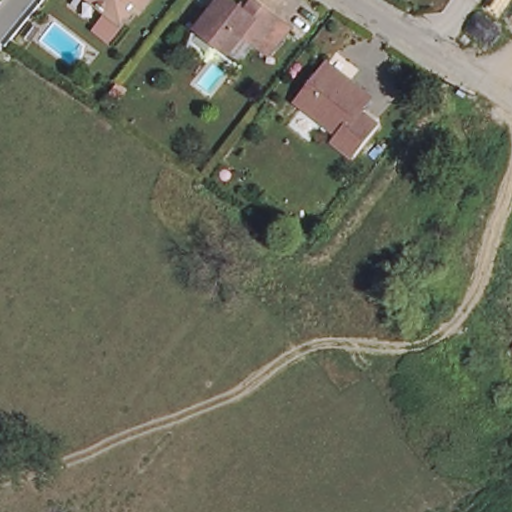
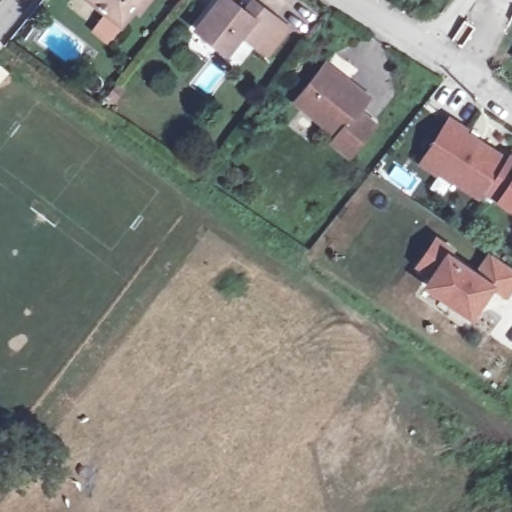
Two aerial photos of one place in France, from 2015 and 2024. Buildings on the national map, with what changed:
unchanged [(131,9),(117,25),(88,0),(144,0),(135,13),(131,9)]
unchanged [(256,51),(241,38),(226,58),(196,33),(223,0),(227,0),(247,17),(256,6),(278,24),(291,34),(270,62),(256,51)]
unchanged [(362,109),(380,123),(355,154),(336,140),(340,135),(296,100),(323,66),(329,58),(351,77),(372,95),(362,109)]
new [(470,126),(467,130),(507,154),(510,151),(512,152),(512,210),(496,200),(483,192),(480,201),(419,164),(448,114),(470,126)]
new [(449,254),(477,273),(490,252),(512,267),(512,286),(505,296),(491,286),(463,328),(414,296),(425,280),(412,272),(435,238),(452,250),(449,254)]

